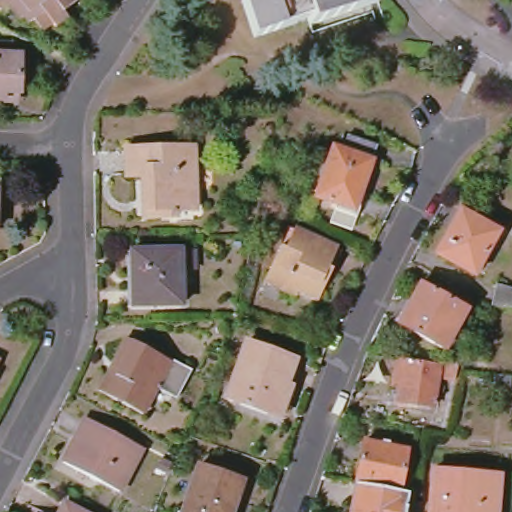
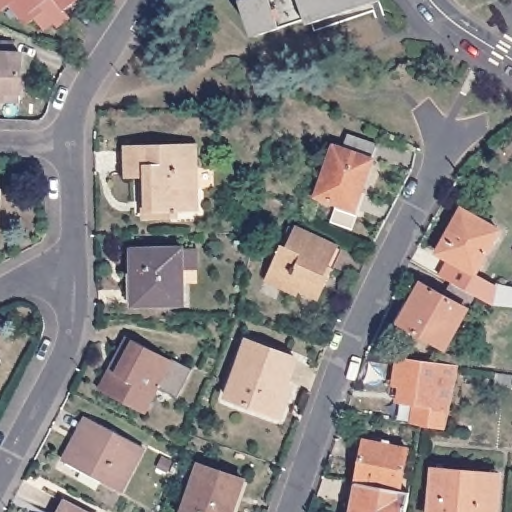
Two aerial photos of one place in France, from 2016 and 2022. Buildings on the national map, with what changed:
unchanged [(69,16),(56,26),(51,20),(41,28),(34,18),(29,23),(25,17),(21,19),(10,4),(1,10),(0,9),(0,0),(77,0),(65,10),(69,16)]
unchanged [(310,24),(308,19),(255,36),(243,0),(379,0),(379,1),(310,24)]
unchanged [(20,50),(20,88),(4,87),(4,95),(0,95),(0,49),(20,50)]
unchanged [(333,146),(343,149),(348,134),(376,144),(371,159),(372,159),(360,194),(354,192),(348,208),(316,197),(333,146)]
unchanged [(195,145),(196,209),(176,210),(176,217),(147,218),(146,175),(127,175),(127,148),(195,145)]
unchanged [(450,243),(445,239),(461,209),(498,230),(475,274),(443,256),(450,243)]
unchanged [(338,246),(328,268),(331,269),(317,300),(298,291),(296,295),(265,281),(280,245),(285,248),(295,226),(338,246)]
unchanged [(136,305),(135,272),(132,272),(131,250),(181,249),(196,249),(196,268),(182,268),(182,304),(136,305)]
unchanged [(417,304),(410,300),(420,283),(443,296),(450,284),(473,296),(466,309),(467,309),(445,349),(405,327),(417,304)]
unchanged [(512,288),(512,307),(491,305),(497,284),(512,288)]
unchanged [(127,337),(170,359),(171,359),(192,369),(177,398),(157,388),(143,414),(99,391),(127,337)]
unchanged [(247,341),(295,359),(280,401),(273,398),(268,413),(226,398),(247,341)]
unchanged [(463,366),(460,379),(443,377),(438,406),(403,401),(405,386),(398,384),(402,358),(463,366)]
unchanged [(510,387),(494,384),(495,374),(512,376),(510,387)]
unchanged [(86,417),(143,447),(120,491),(63,462),(86,417)]
unchanged [(364,441),(407,449),(399,491),(360,483),(356,483),(364,441)]
unchanged [(231,512),(182,512),(198,464),(242,480),(231,512)]
unchanged [(433,469),(500,475),(496,512),(430,512),(433,469)]
unchanged [(352,504),(357,505),(360,483),(399,491),(409,493),(405,512),(350,512),(352,504)]
unchanged [(65,502),(83,512),(59,512),(65,502)]

